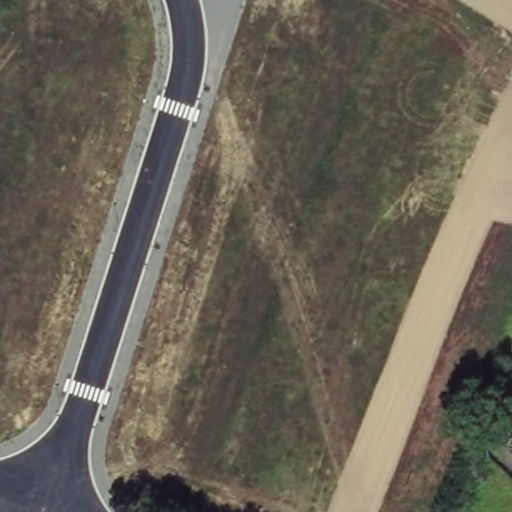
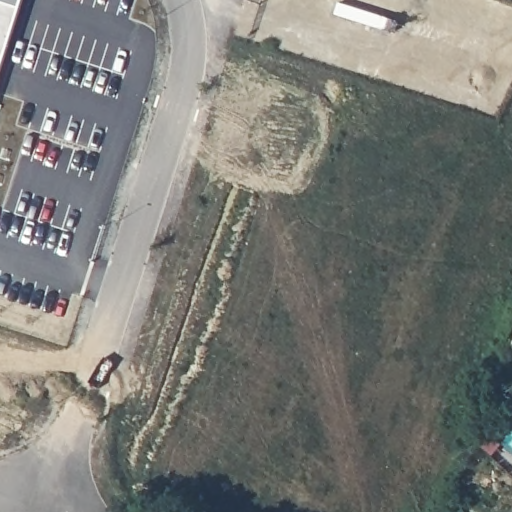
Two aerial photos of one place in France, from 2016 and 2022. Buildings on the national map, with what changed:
new [(0,73),(0,0),(23,0),(0,73)]

